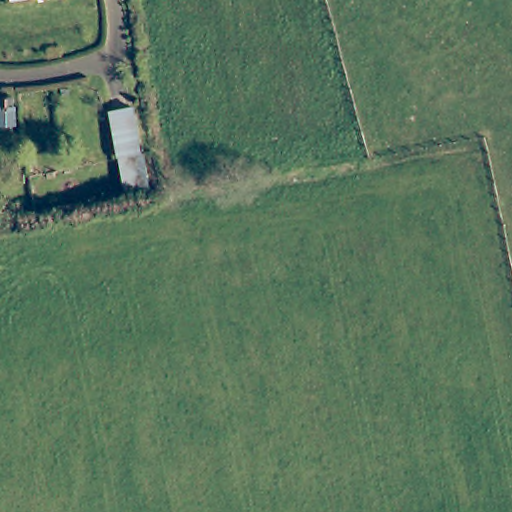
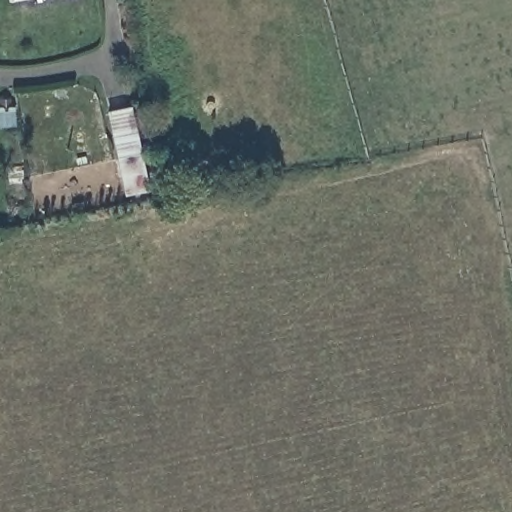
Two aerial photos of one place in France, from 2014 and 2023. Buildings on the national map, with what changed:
unchanged [(111,116),(133,109),(150,193),(128,198),(111,116)]

